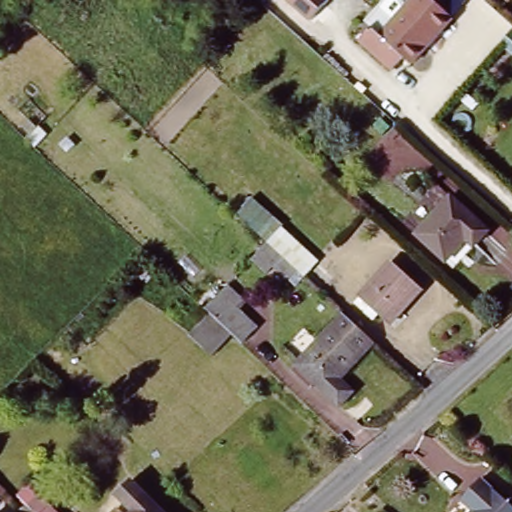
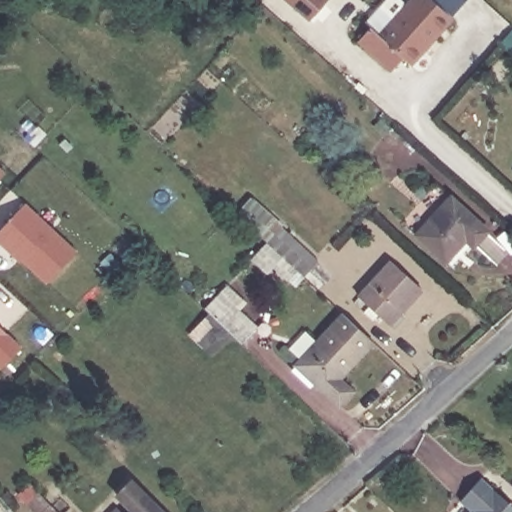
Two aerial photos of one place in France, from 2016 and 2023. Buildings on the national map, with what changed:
unchanged [(285,0),(326,0),(307,20),(285,0)]
unchanged [(371,40),(382,27),(389,34),(420,0),(441,0),(460,18),(420,62),(413,56),(402,69),(371,40)]
new [(0,179),(0,169),(5,174),(0,179)]
unchanged [(308,268),(302,264),(289,274),(273,260),(265,267),(254,256),(272,236),(242,210),(260,191),(322,254),(308,268)]
unchanged [(449,199),(487,234),(475,247),(467,240),(445,264),(415,236),(449,199)]
new [(77,252),(47,283),(8,246),(6,248),(0,243),(0,231),(25,204),(77,252)]
unchanged [(393,263),(421,290),(387,326),(359,300),(393,263)]
unchanged [(210,312),(205,306),(227,285),(245,300),(238,307),(257,325),(242,343),(232,334),(211,356),(190,335),(210,312)]
unchanged [(340,312),(375,345),(343,380),(355,392),(339,408),(292,365),(340,312)]
new [(2,368),(0,366),(0,327),(22,349),(2,368)]
unchanged [(478,507),(460,491),(482,471),(512,500),(512,512),(473,512),(478,507)]
unchanged [(117,497),(132,483),(160,512),(131,512),(117,497)]
unchanged [(50,510),(52,512),(49,512),(50,510)]

